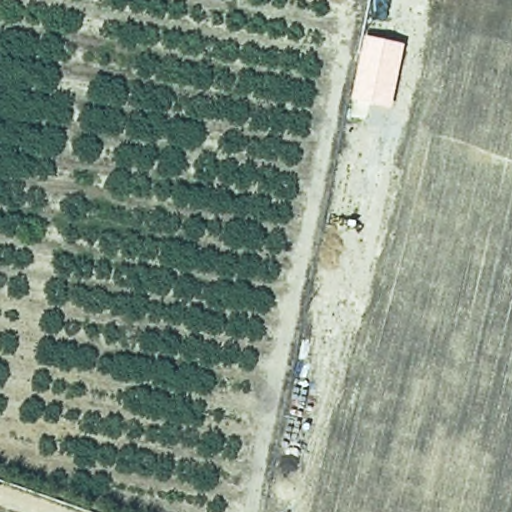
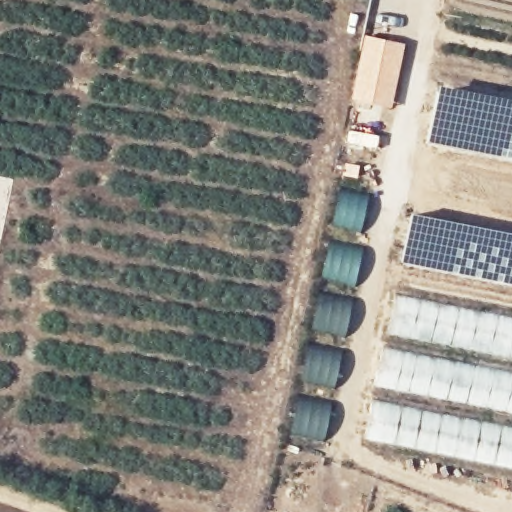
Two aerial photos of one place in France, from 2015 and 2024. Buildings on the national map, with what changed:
unchanged [(351,101),(365,37),(404,45),(390,108),(351,101)]
new [(344,337),(310,330),(317,290),(352,297),(344,337)]
new [(512,317),(512,467),(364,438),(395,295),(512,317)]
new [(334,388),(299,381),(307,342),(342,348),(334,388)]
new [(323,440),(289,433),(297,393),(331,400),(323,440)]

